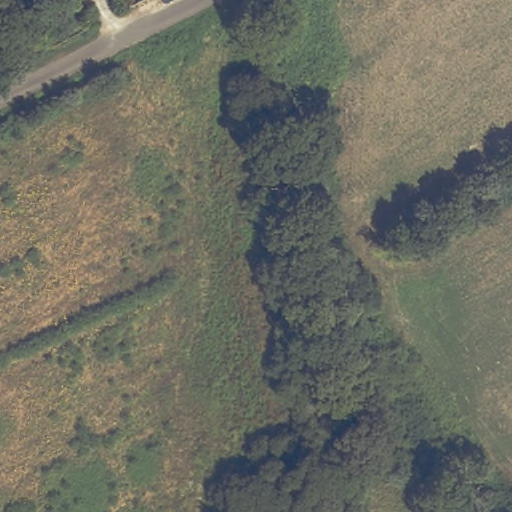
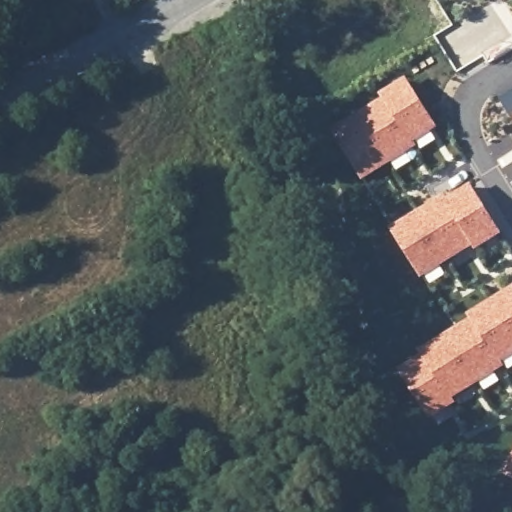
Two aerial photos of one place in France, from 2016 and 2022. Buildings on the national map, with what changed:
new [(406,77),(437,127),(414,142),(418,146),(362,182),(329,131),(382,98),(379,94),(406,77)]
new [(512,92),(512,116),(501,99),(512,92)]
new [(445,193),(448,197),(470,183),(503,234),(476,250),(473,246),(420,279),(389,228),(445,193)]
new [(417,351),(468,319),(466,314),(512,286),(512,355),(503,360),(506,366),(453,397),(457,403),(429,421),(397,370),(419,355),(417,351)]
new [(512,481),(500,473),(512,454),(512,481)]

